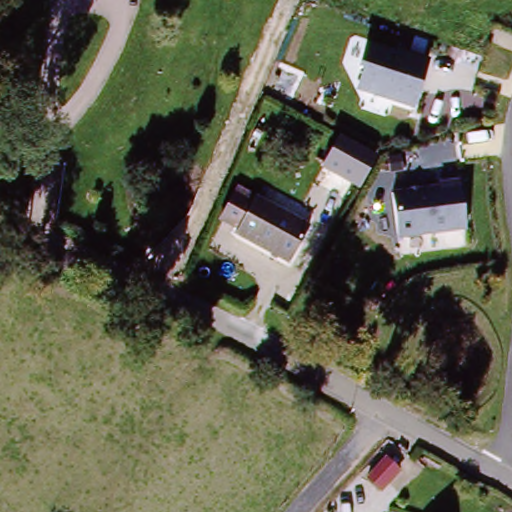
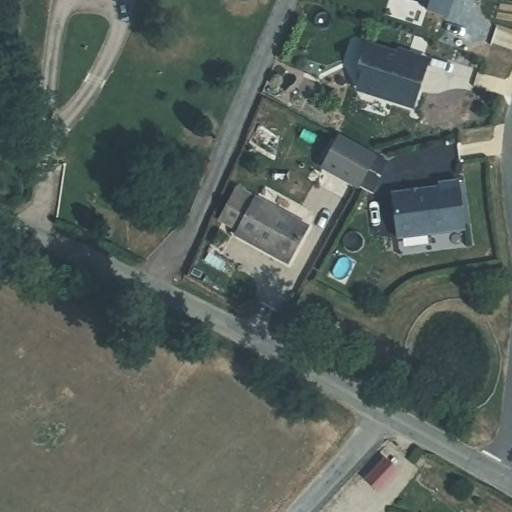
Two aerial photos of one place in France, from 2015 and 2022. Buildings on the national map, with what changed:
new [(447,16),(425,9),(422,2),(414,0),(452,0),(447,16)]
unchanged [(354,95),(362,49),(430,59),(419,108),(354,95)]
unchanged [(337,134),(375,155),(359,190),(320,169),(337,134)]
unchanged [(403,237),(398,185),(467,177),(472,233),(403,237)]
unchanged [(239,225),(220,215),(235,188),(252,197),(255,193),(309,222),(290,259),(235,230),(239,225)]
unchanged [(368,481),(390,456),(405,471),(383,494),(368,481)]

